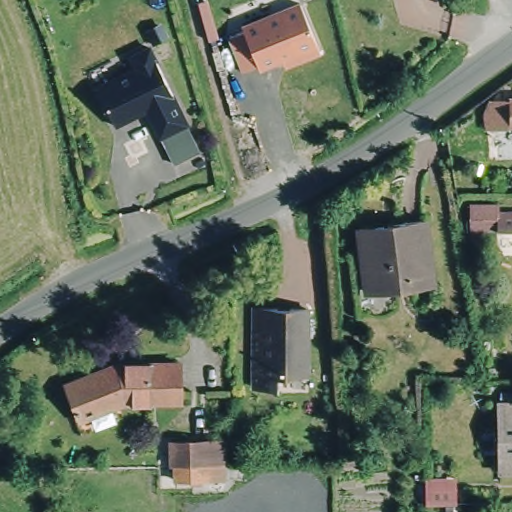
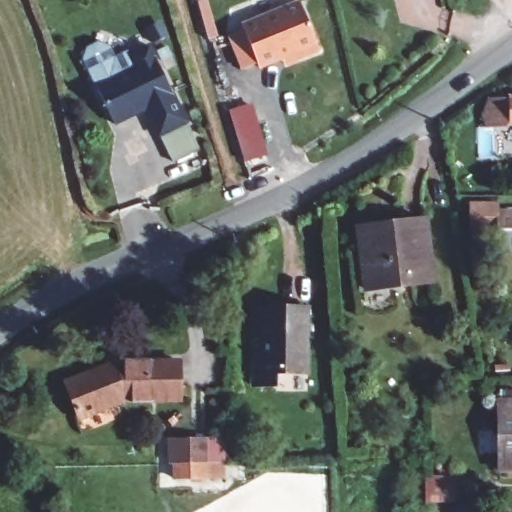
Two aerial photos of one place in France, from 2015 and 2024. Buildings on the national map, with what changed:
unchanged [(287,59),(264,70),(262,66),(249,72),(235,37),(248,32),(247,28),(305,4),(325,52),(304,61),(290,66),(287,59)]
unchanged [(192,120),(165,134),(152,107),(120,122),(100,84),(140,64),(134,52),(154,42),(192,120)]
unchanged [(490,127),(489,97),(512,95),(512,126),(490,127)]
new [(228,111),(252,103),(268,156),(244,162),(228,111)]
unchanged [(512,212),(512,231),(506,231),(506,222),(491,222),(491,234),(480,234),(480,204),(507,204),(507,212),(512,212)]
unchanged [(429,221),(434,280),(369,282),(365,223),(429,221)]
unchanged [(312,303),(312,368),(281,368),(281,381),(259,380),(260,303),(312,303)]
unchanged [(123,358),(185,358),(184,397),(131,397),(89,415),(72,382),(123,358)]
unchanged [(505,395),(512,395),(512,464),(505,464),(505,395)]
unchanged [(174,477),(174,462),(169,462),(169,438),(226,437),(226,461),(225,476),(174,477)]
unchanged [(429,487),(429,475),(450,475),(460,475),(460,484),(460,487),(460,500),(429,500),(429,487)]

